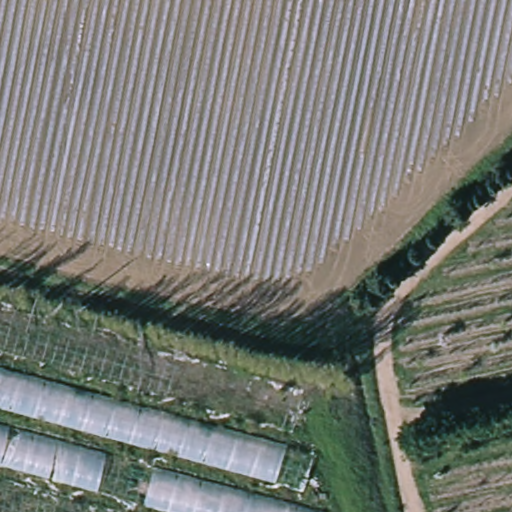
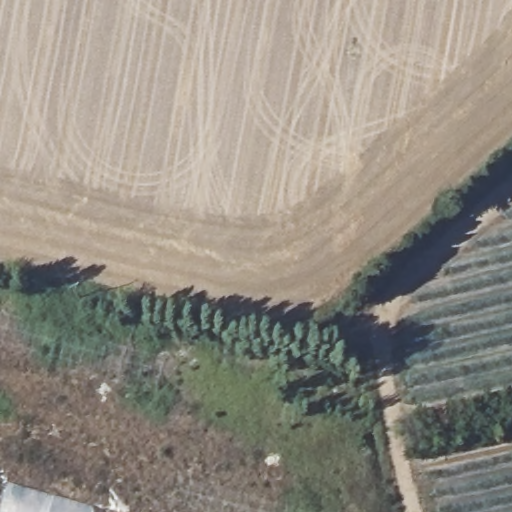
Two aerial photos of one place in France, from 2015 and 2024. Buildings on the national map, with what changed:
demolished [(335,512),(0,512),(0,309),(319,395),(335,512)]
new [(114,512),(0,512),(0,481),(114,512)]

